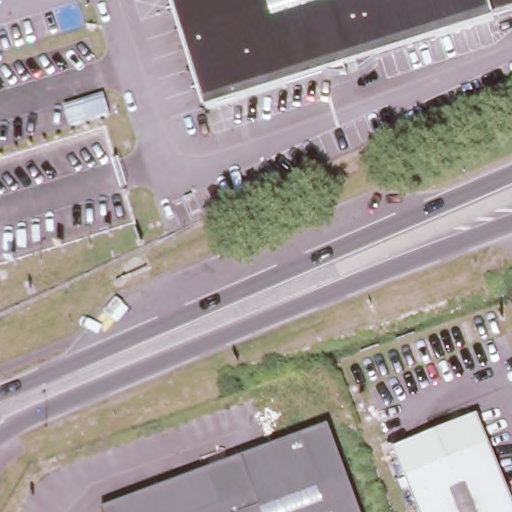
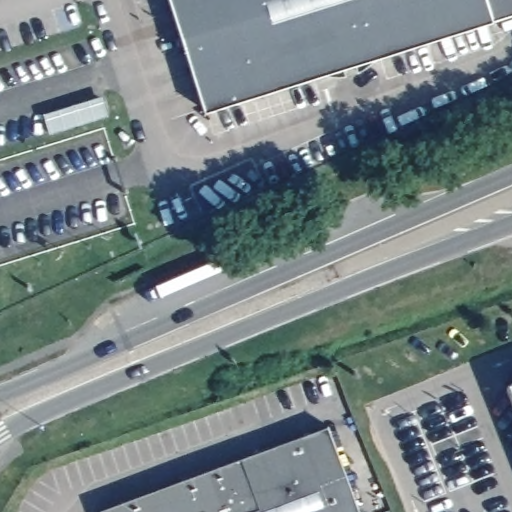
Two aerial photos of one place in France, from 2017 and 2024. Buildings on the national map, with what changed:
unchanged [(377,58),(374,62),(369,67),(364,70),(352,76),(337,77),(324,75),(207,112),(172,0),(489,0),(495,21),(377,58)]
unchanged [(512,0),(512,16),(495,21),(489,0),(512,0)]
new [(50,135),(44,115),(103,96),(110,115),(50,135)]
new [(512,388),(512,397),(509,389),(512,388)]
demolished [(476,415),(512,498),(512,512),(418,512),(392,448),(476,415)]
unchanged [(327,425),(360,512),(105,512),(104,508),(327,425)]

